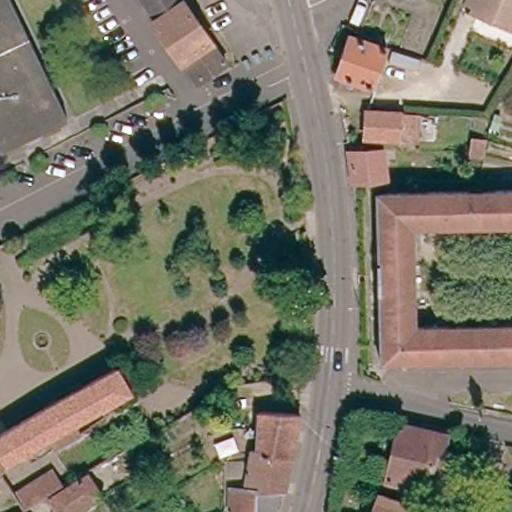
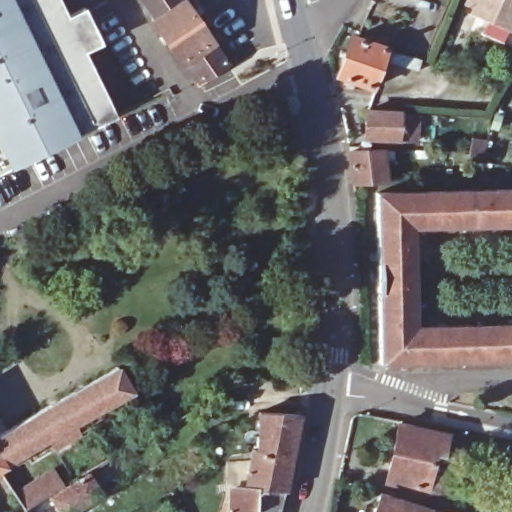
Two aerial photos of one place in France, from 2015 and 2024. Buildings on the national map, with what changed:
unchanged [(0,151),(0,0),(10,0),(67,119),(1,152),(0,151)]
new [(67,16),(85,7),(102,43),(84,52),(115,116),(79,132),(9,166),(0,171),(0,151),(1,152),(67,119),(10,0),(60,0),(67,16)]
unchanged [(227,62),(197,82),(183,61),(181,63),(152,21),(155,20),(140,0),(183,0),(227,62)]
unchanged [(475,8),(467,5),(469,0),(512,0),(512,31),(487,20),(472,14),(475,8)]
unchanged [(387,49),(374,88),(338,75),(351,37),(387,49)]
unchanged [(422,115),(421,141),(405,141),(405,139),(370,137),(372,112),(406,114),(422,115)]
unchanged [(496,128),(492,127),(495,115),(500,116),(496,128)]
unchanged [(352,183),(348,152),(382,150),(386,182),(352,183)]
unchanged [(412,228),(416,326),(512,324),(512,360),(381,363),(376,192),(512,189),(512,225),(412,228)]
unchanged [(131,391),(0,466),(0,433),(117,367),(131,391)]
unchanged [(292,457),(256,458),(257,412),(299,414),(292,457)]
unchanged [(440,436),(437,455),(448,457),(438,506),(392,496),(395,485),(381,482),(393,426),(440,436)]
unchanged [(246,491),(252,458),(256,458),(292,457),(284,491),(279,512),(230,512),(230,492),(246,491)]
unchanged [(14,493),(52,469),(62,484),(25,509),(14,493)]
unchanged [(86,472),(100,495),(72,512),(59,512),(49,496),(86,472)]
unchanged [(422,511),(422,512),(368,512),(374,495),(422,511)]
unchanged [(27,511),(27,512),(25,512),(26,511),(27,511)]
unchanged [(425,512),(422,512),(422,511),(425,512)]

